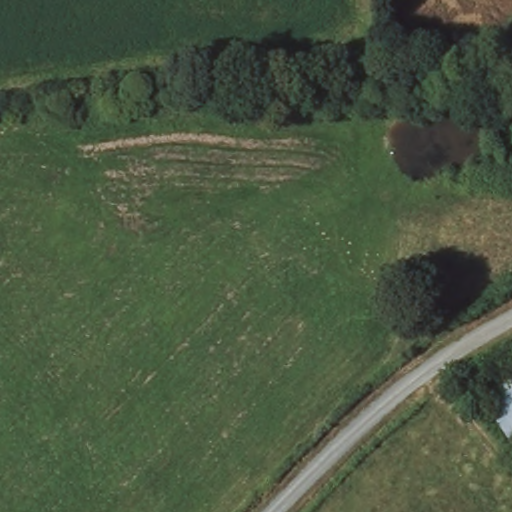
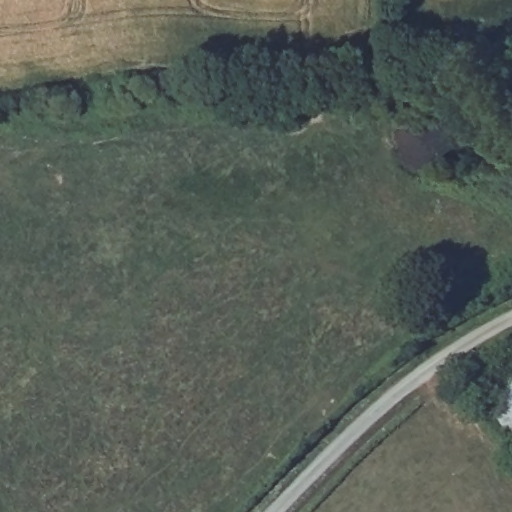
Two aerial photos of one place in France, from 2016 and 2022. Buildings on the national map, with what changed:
unchanged [(512,390),(512,453),(465,384),(494,364),(512,390)]

